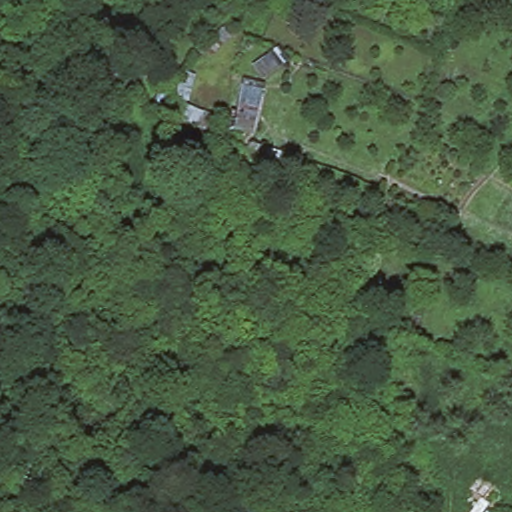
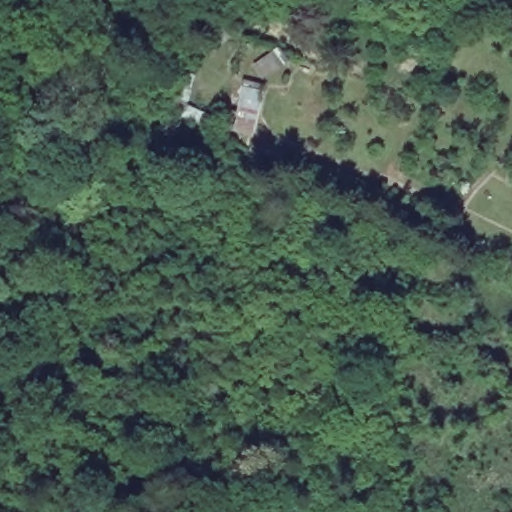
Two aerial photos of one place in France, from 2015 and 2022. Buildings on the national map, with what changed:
unchanged [(264,84),(256,137),(230,133),(240,79),(264,84)]

